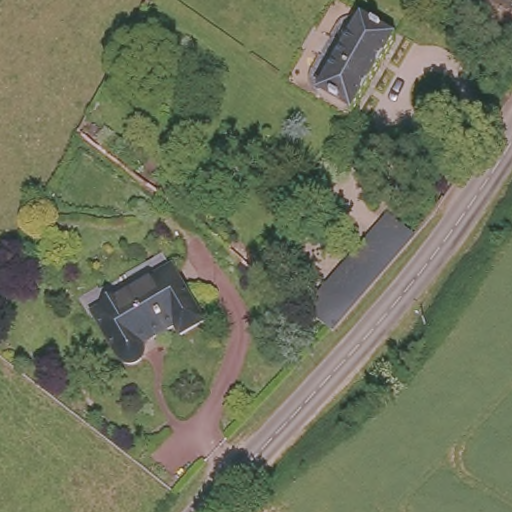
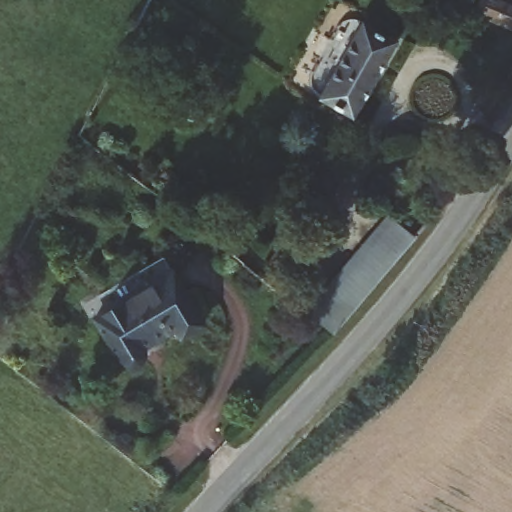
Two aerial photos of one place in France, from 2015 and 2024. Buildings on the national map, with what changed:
unchanged [(476,7),(478,0),(506,0),(512,3),(512,25),(476,7)]
unchanged [(313,90),(309,85),(309,78),(311,70),(345,20),(353,17),(362,17),(367,19),(371,21),(320,95),(313,90)]
unchanged [(371,21),(402,40),(377,75),(350,114),(320,95),(371,21)]
unchanged [(244,251),(254,240),(318,284),(386,211),(418,234),(328,328),(244,251)]
unchanged [(198,320),(176,335),(169,323),(136,341),(139,347),(139,350),(137,356),(131,360),(124,360),(118,356),(95,312),(171,270),(198,320)]

